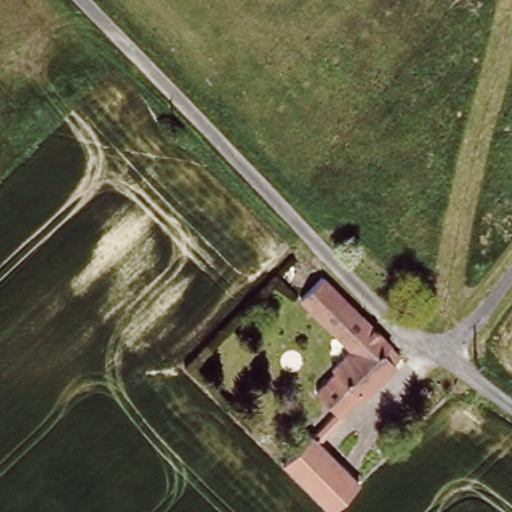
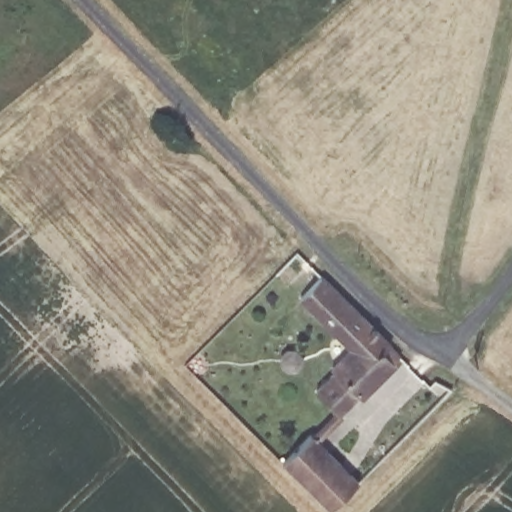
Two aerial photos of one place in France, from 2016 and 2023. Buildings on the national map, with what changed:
unchanged [(341,369),(335,363),(352,345),(304,292),(327,270),(408,352),(361,399),(356,395),(340,410),(322,388),(341,369)]
unchanged [(360,479),(326,511),(278,465),(314,433),(360,479)]

